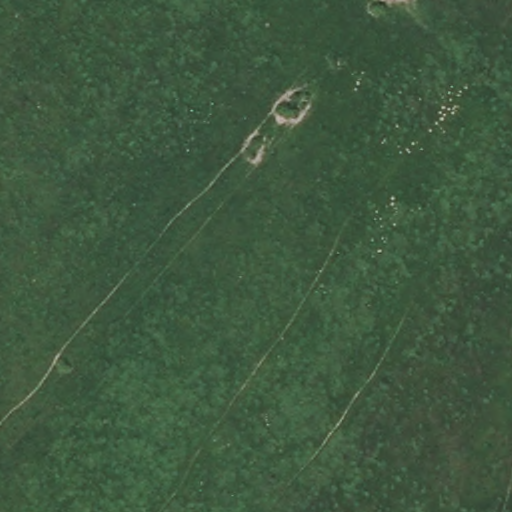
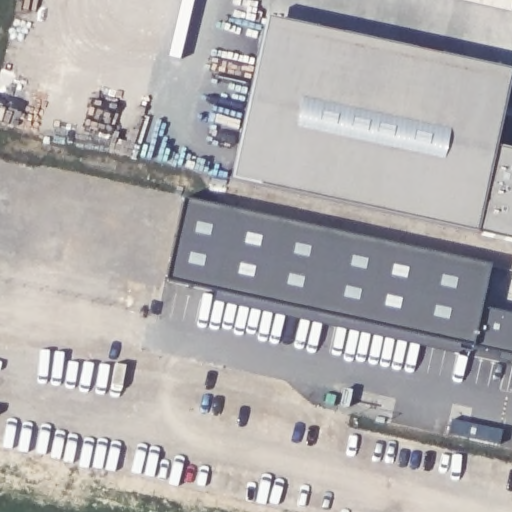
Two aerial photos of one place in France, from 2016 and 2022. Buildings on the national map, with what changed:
new [(511,72),(494,149),(512,153),(512,242),(231,180),(265,20),(511,72)]
new [(490,266),(481,308),(512,315),(512,357),(165,282),(183,199),(490,266)]
new [(451,420),(502,430),(499,445),(448,433),(451,420)]

